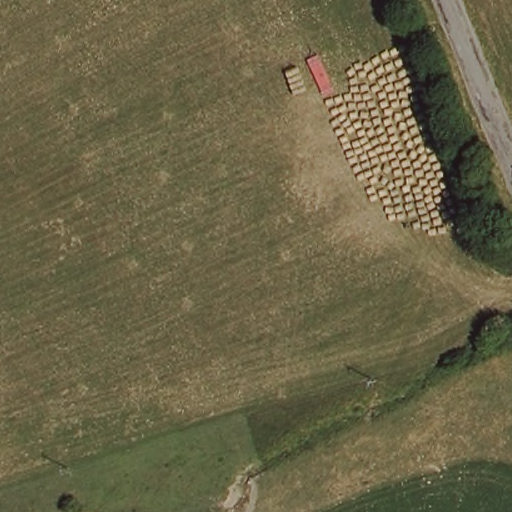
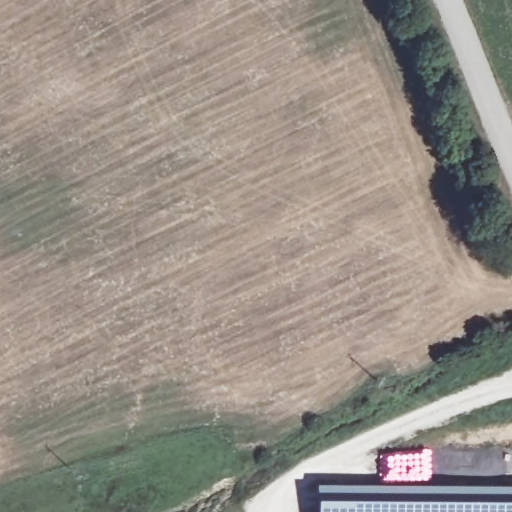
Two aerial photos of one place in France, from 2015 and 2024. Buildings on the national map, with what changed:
new [(512,493),(512,512),(326,512),(326,492),(512,493)]

